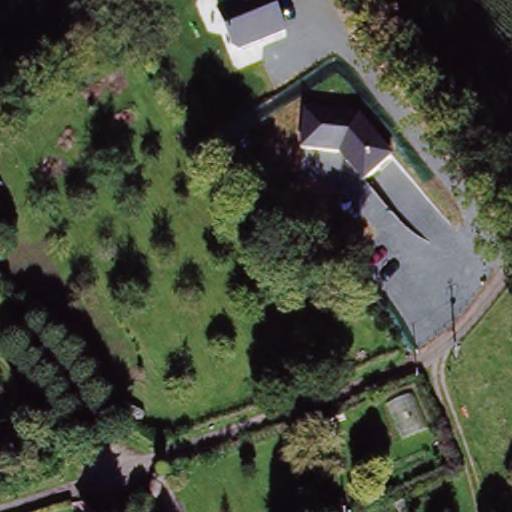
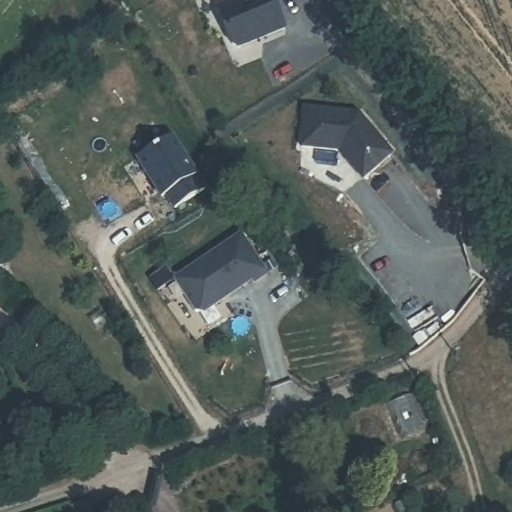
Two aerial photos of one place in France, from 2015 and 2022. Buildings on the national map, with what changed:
unchanged [(229,0),(272,0),(282,29),(234,49),(219,4),(229,0)]
unchanged [(361,113),(393,151),(362,178),(340,152),(301,148),(306,109),(361,113)]
new [(137,160),(174,135),(206,189),(174,208),(166,196),(160,199),(137,160)]
new [(241,234),(268,276),(252,285),(251,283),(204,314),(195,311),(174,279),(241,234)]
demolished [(375,296),(392,318),(354,346),(337,324),(363,305),(370,300),(375,296)]

